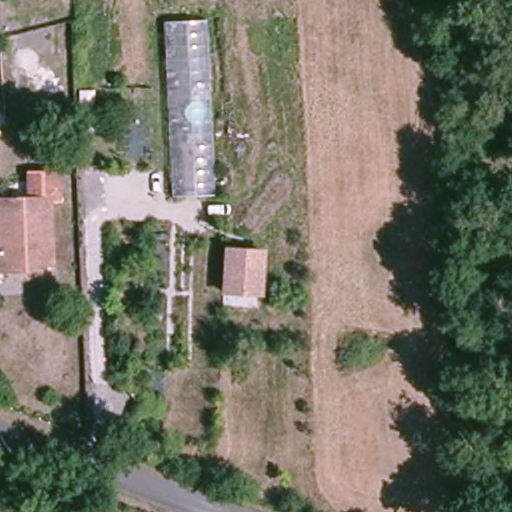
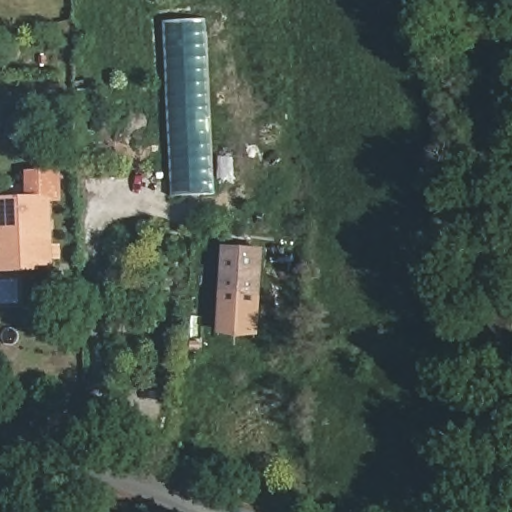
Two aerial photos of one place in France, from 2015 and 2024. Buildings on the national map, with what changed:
unchanged [(164,21),(207,19),(212,196),(170,197),(164,21)]
unchanged [(34,207),(34,188),(59,189),(59,208),(47,208),(47,270),(0,269),(0,206),(34,207)]
unchanged [(263,248),(261,296),(220,295),(222,245),(263,248)]
new [(259,334),(217,332),(220,295),(261,296),(259,334)]

